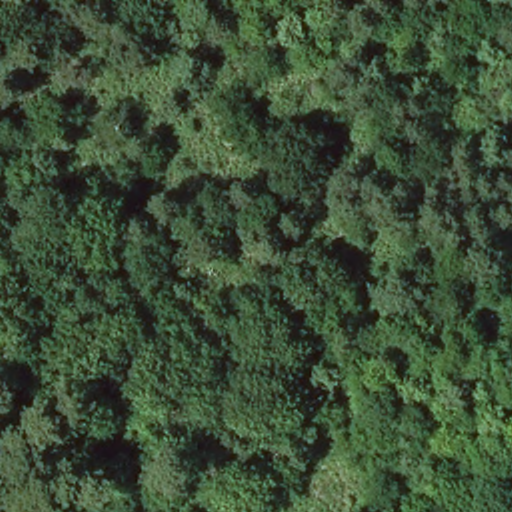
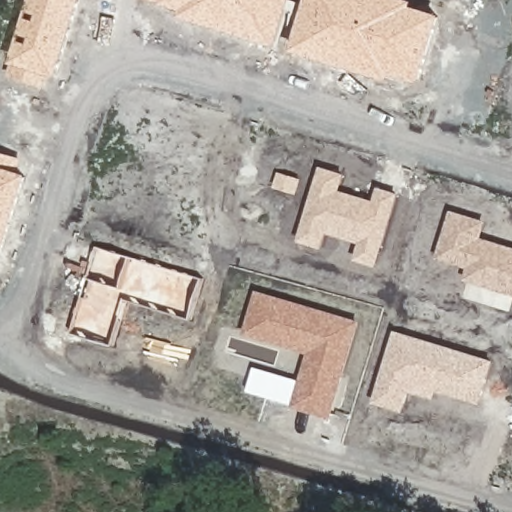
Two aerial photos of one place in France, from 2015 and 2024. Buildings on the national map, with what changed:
new [(47,88),(10,76),(16,65),(10,63),(31,0),(81,0),(57,77),(51,75),(47,88)]
new [(180,16),(182,10),(161,3),(149,0),(291,0),(277,47),(180,16)]
new [(441,15),(421,83),(392,74),(391,80),(292,52),(307,0),(409,0),(414,1),(412,7),(441,15)]
new [(20,171),(27,174),(0,264),(0,153),(23,159),(20,171)]
new [(327,233),(322,249),(297,242),(320,167),(346,175),(341,191),(373,202),(377,186),(398,192),(377,267),(355,260),(360,243),(327,233)]
new [(481,239),(512,248),(512,296),(464,281),(468,268),(436,259),(452,211),(486,221),(481,239)]
new [(204,279),(192,320),(127,301),(113,346),(71,334),(97,246),(204,279)]
new [(242,334),(256,290),(360,321),(330,419),(291,407),(307,353),(242,334)]
new [(437,391),(435,399),(410,392),(403,413),(373,403),(395,331),(493,361),(481,404),(437,391)]

